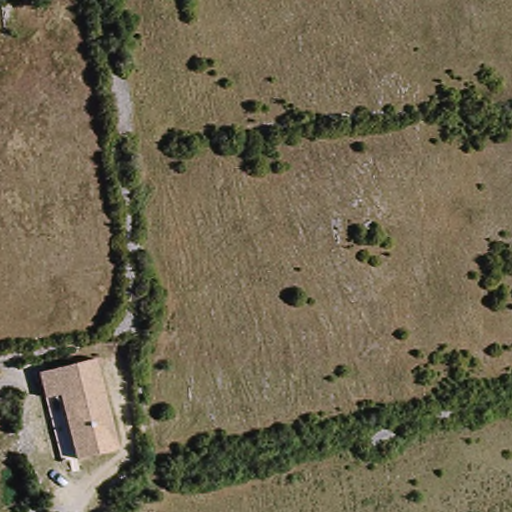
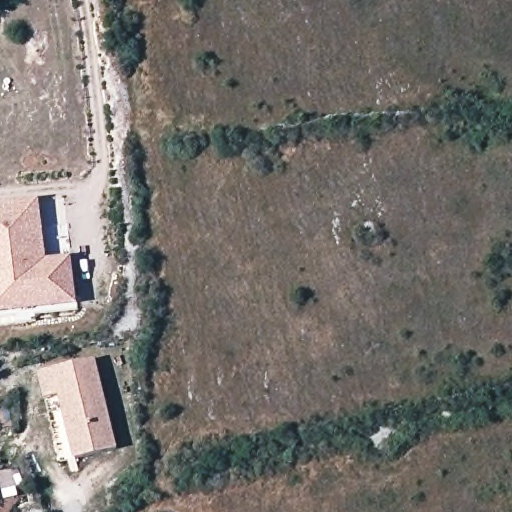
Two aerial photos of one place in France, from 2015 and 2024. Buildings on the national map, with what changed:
new [(43,228),(35,229),(38,246),(30,247),(31,262),(39,260),(72,257),(72,261),(76,297),(78,310),(35,315),(36,322),(15,325),(14,317),(0,319),(0,204),(39,200),(43,228)]
unchanged [(94,361),(113,452),(70,461),(58,395),(43,397),(38,372),(94,361)]

